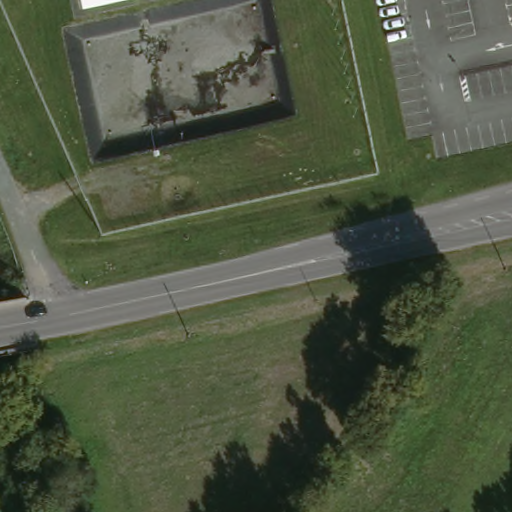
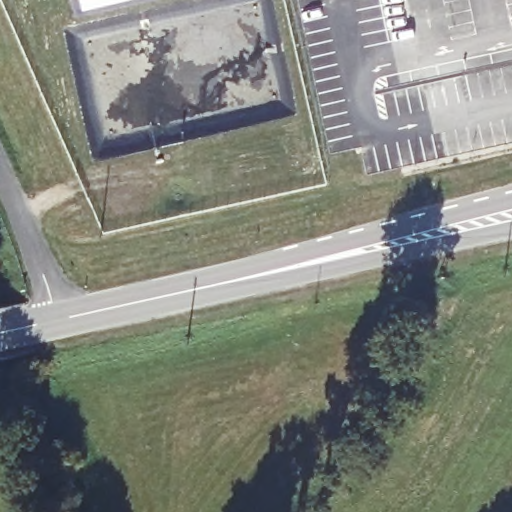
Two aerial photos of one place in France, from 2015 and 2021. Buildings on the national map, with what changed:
[]

